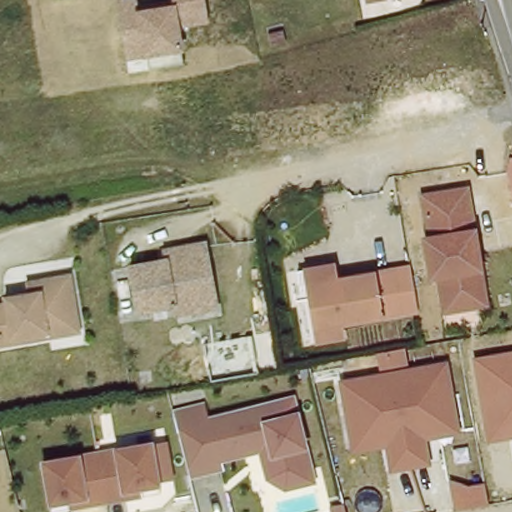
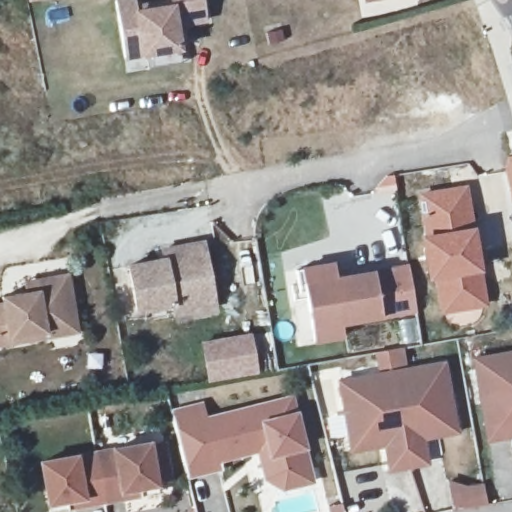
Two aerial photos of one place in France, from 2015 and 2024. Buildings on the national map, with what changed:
unchanged [(178,29),(184,64),(148,70),(147,56),(127,61),(118,0),(135,0),(137,8),(171,4),(171,0),(204,0),(207,23),(178,29)]
unchanged [(468,190),(475,233),(488,307),(478,308),(465,234),(458,192),(468,190)]
unchanged [(426,242),(426,240),(431,240),(424,198),(458,192),(465,234),(478,308),(446,314),(440,279),(433,279),(426,242)]
unchanged [(196,312),(176,315),(174,305),(138,312),(132,280),(130,268),(166,260),(164,252),(174,249),(205,244),(209,268),(214,293),(217,308),(196,312)]
unchanged [(395,270),(402,315),(381,319),(338,326),(313,330),(308,300),(306,285),(335,280),(373,274),(395,270)]
unchanged [(12,345),(0,347),(0,304),(3,304),(3,302),(2,298),(26,294),(25,283),(37,280),(68,275),(71,290),(76,319),(78,334),(12,345)]
new [(254,335),(260,373),(213,382),(206,344),(254,335)]
unchanged [(473,358),(512,351),(512,439),(487,444),(473,358)]
unchanged [(458,435),(424,441),(428,467),(386,473),(381,449),(349,453),(337,379),(445,363),(458,435)]
unchanged [(278,485),(261,475),(254,446),(211,457),(213,464),(182,472),(167,409),(196,402),(200,417),(286,396),(303,466),(306,479),(278,485)]
unchanged [(118,495),(99,499),(90,449),(91,449),(144,439),(152,482),(153,489),(118,495)]
unchanged [(43,501),(36,459),(90,449),(99,499),(79,502),(45,508),(43,501)]
new [(470,489),(488,487),(491,506),(458,511),(455,484),(470,489)]
new [(333,509),(347,506),(348,512),(334,512),(333,509)]

